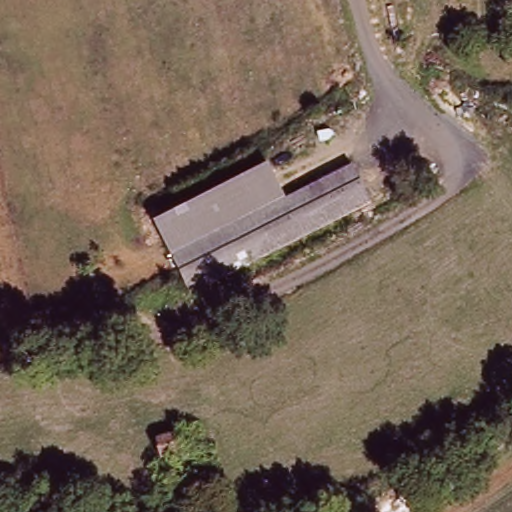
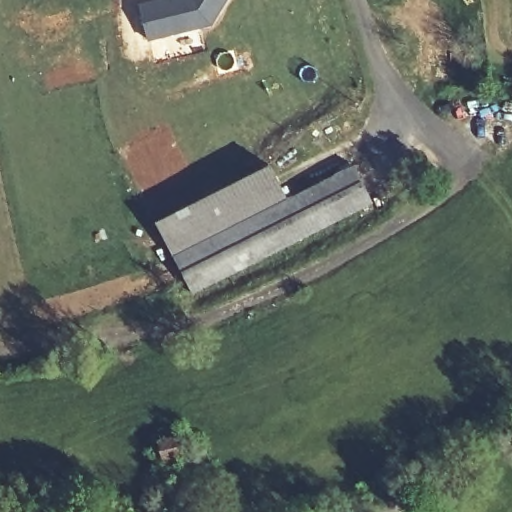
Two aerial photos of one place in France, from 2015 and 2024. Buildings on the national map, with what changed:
new [(145,0),(227,0),(212,27),(147,41),(137,2),(145,0)]
unchanged [(270,164),(288,198),(353,162),(372,198),(197,293),(160,223),(270,164)]
unchanged [(157,440),(172,437),(175,455),(161,457),(157,440)]

